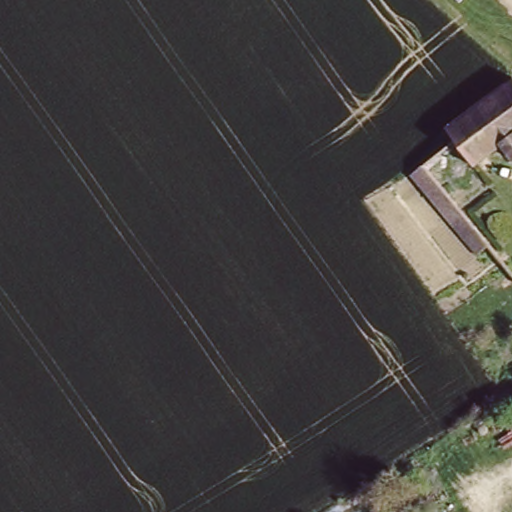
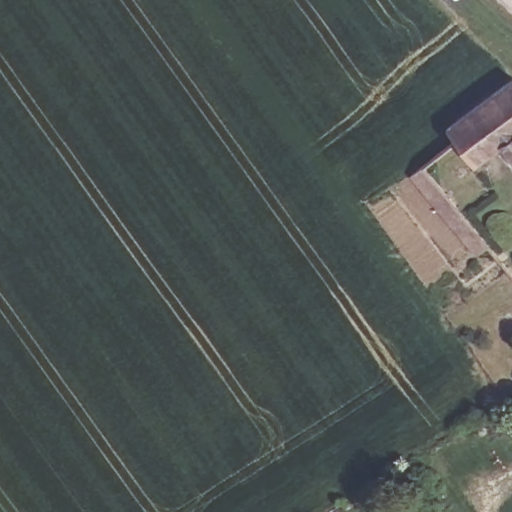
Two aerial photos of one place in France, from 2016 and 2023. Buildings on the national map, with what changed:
unchanged [(512,146),(511,144),(480,163),(468,149),(463,145),(456,136),(512,95),(512,146)]
unchanged [(463,145),(468,149),(435,177),(498,252),(491,256),(487,252),(480,257),(415,182),(463,145)]

